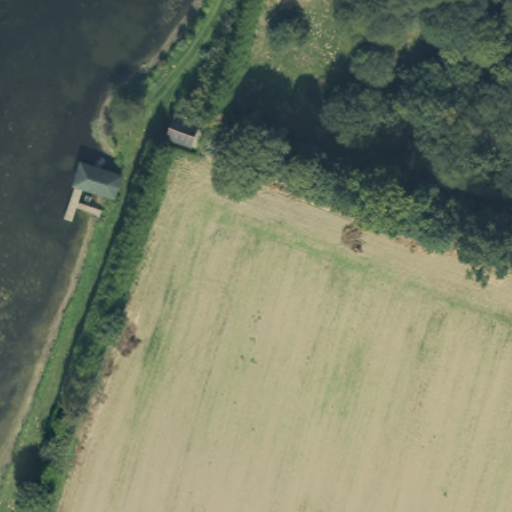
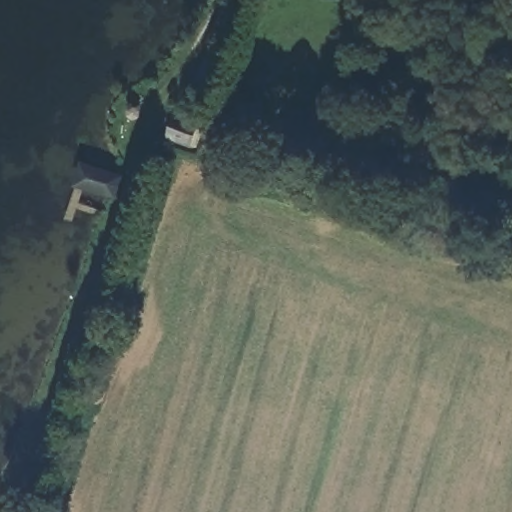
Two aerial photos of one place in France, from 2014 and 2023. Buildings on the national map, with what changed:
unchanged [(175,114),(200,123),(193,145),(167,136),(175,114)]

